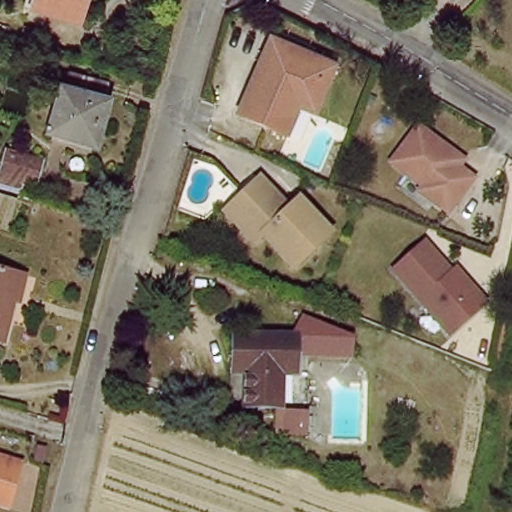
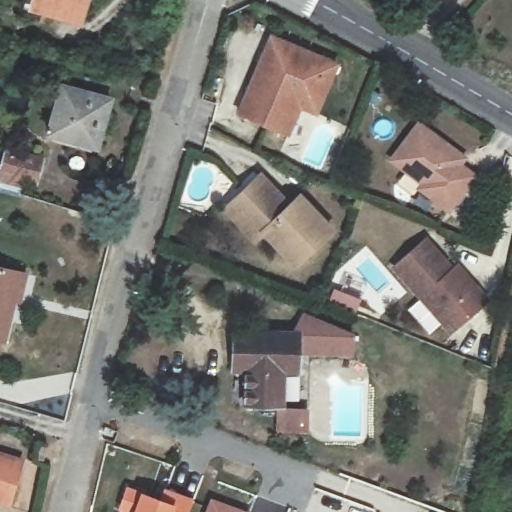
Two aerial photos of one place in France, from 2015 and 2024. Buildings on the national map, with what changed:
unchanged [(89,0),(84,18),(33,1),(33,0),(89,0)]
unchanged [(302,105),(289,133),(242,111),(275,36),(339,66),(325,99),(319,113),(302,105)]
unchanged [(48,135),(63,86),(68,87),(73,74),(121,87),(115,101),(110,100),(95,149),(48,135)]
unchanged [(416,126),(452,155),(448,159),(472,178),(446,214),(433,204),(437,200),(390,163),(416,126)]
unchanged [(0,199),(4,186),(12,159),(45,169),(37,195),(28,193),(22,208),(0,202),(0,199)]
unchanged [(286,209),(297,200),(329,234),(293,267),(263,234),(253,242),(224,211),(233,203),(259,180),(286,209)]
unchanged [(424,243),(469,292),(472,288),(484,300),(450,332),(394,271),(424,243)]
unchanged [(23,298),(17,297),(4,338),(0,337),(0,266),(30,276),(23,298)]
unchanged [(356,331),(355,356),(303,355),(304,329),(294,329),(304,310),(356,331)]
unchanged [(294,329),(304,329),(303,355),(303,366),(287,366),(286,402),(248,400),(248,366),(235,365),(236,326),(294,329)]
unchanged [(41,454),(38,467),(26,465),(29,451),(41,454)]
unchanged [(7,505),(0,503),(0,455),(20,461),(7,505)]
new [(142,491),(162,499),(169,489),(194,500),(189,512),(128,512),(118,510),(128,486),(142,491)]
new [(246,512),(206,512),(211,500),(246,512)]

